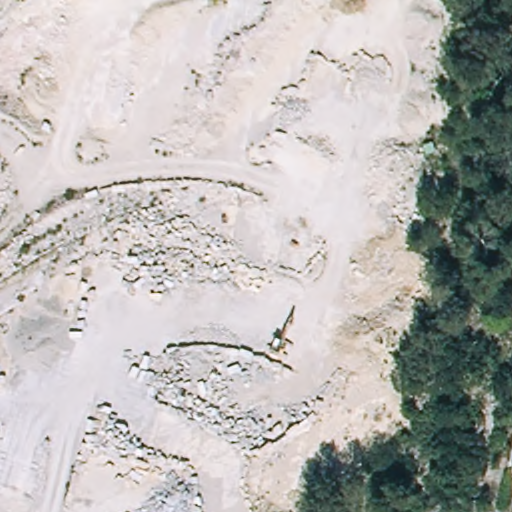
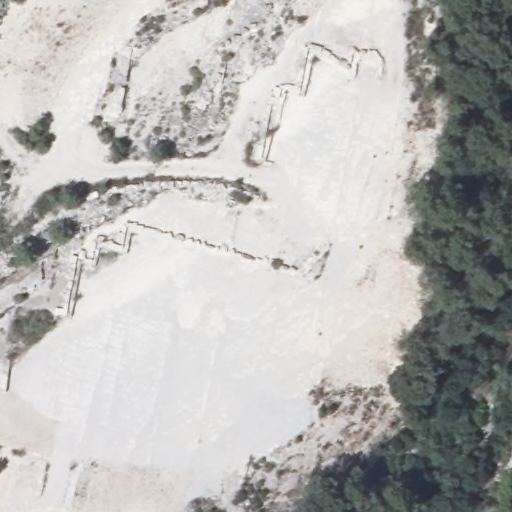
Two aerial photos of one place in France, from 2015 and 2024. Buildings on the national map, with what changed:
unchanged [(512,472),(512,470),(512,478),(510,477),(511,473),(512,472)]

